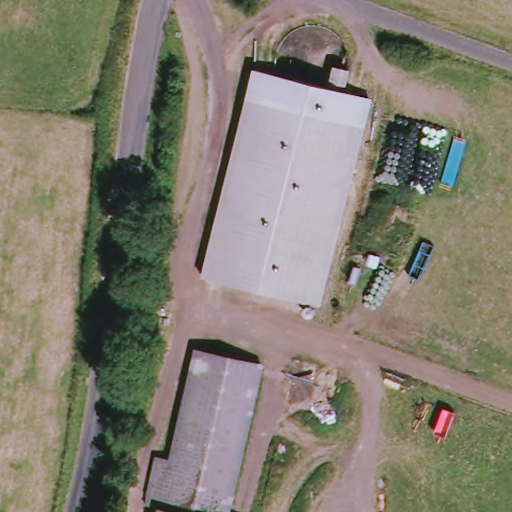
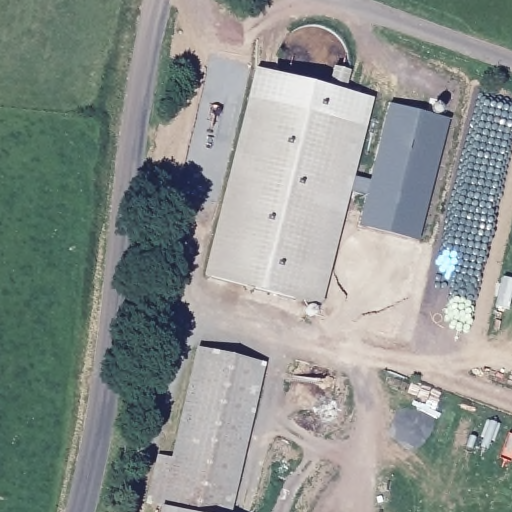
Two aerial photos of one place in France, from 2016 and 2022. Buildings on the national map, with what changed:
unchanged [(252,67),(325,87),(330,67),(348,70),(343,92),(370,99),(320,307),(200,277),(252,67)]
new [(369,181),(390,105),(449,120),(420,241),(359,225),(366,195),(349,190),(352,177),(369,181)]
unchanged [(142,507),(148,477),(167,481),(195,351),(257,365),(225,512),(158,512),(159,511),(142,507)]

